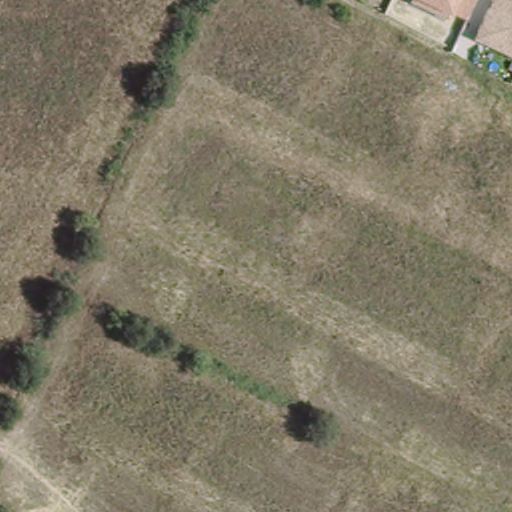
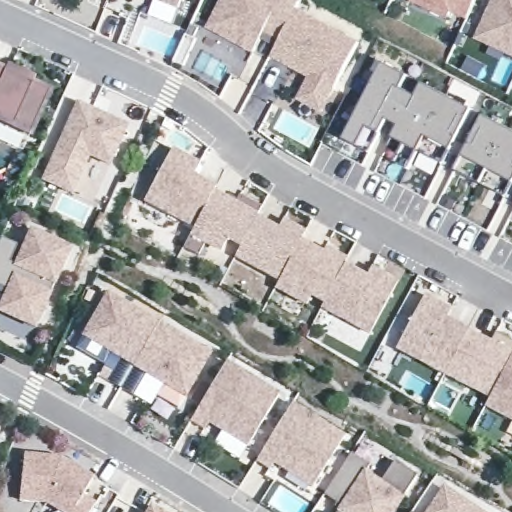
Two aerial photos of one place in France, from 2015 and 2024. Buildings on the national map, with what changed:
new [(183,10),(158,0),(187,0),(183,10)]
new [(300,1),(279,40),(265,33),(253,54),(206,29),(222,0),(298,0),(300,1)]
unchanged [(467,20),(452,13),(426,0),(475,0),(467,20)]
unchanged [(475,38),(493,0),(512,0),(512,55),(475,38)]
new [(359,43),(334,89),(336,90),(321,113),(296,100),(308,78),(271,58),(276,48),(261,40),(265,33),(279,40),(296,8),(359,43)]
new [(506,198),(455,170),(468,146),(457,140),(443,165),(417,152),(408,169),(394,162),(404,143),(394,138),(401,125),(387,118),(369,153),(343,140),(384,63),(407,76),(400,89),(417,98),(424,85),(472,109),(463,129),(474,135),(485,116),(512,130),(512,186),(506,198)]
new [(30,136),(0,122),(0,72),(48,94),(30,136)]
new [(79,97),(129,120),(113,159),(92,150),(75,187),(45,174),(79,97)]
new [(202,168),(196,180),(203,184),(218,191),(214,197),(196,233),(146,206),(174,153),(202,168)]
new [(196,233),(214,197),(236,209),(241,200),(263,212),(258,221),(243,249),(230,242),(223,255),(208,246),(201,260),(186,251),(196,233)]
new [(258,221),(281,233),(285,224),(293,228),(306,236),(301,245),(323,256),(326,252),(348,264),(346,268),(324,305),(313,299),(308,307),(276,291),(280,284),(236,261),(243,249),(258,221)]
new [(0,253),(4,243),(21,250),(13,267),(20,269),(35,235),(73,253),(39,331),(3,315),(10,300),(1,296),(0,295),(0,253)]
new [(324,305),(346,268),(368,279),(372,271),(399,285),(371,336),(322,310),(324,305)]
new [(110,344),(105,354),(79,339),(85,329),(83,328),(109,285),(161,315),(136,359),(110,344)]
new [(427,300),(453,314),(448,323),(470,335),(446,379),(446,380),(397,354),(427,300)]
new [(213,346),(188,388),(185,387),(178,400),(161,390),(168,377),(136,359),(161,315),(213,346)]
new [(470,335),(497,349),(502,340),(512,345),(512,362),(489,402),(446,379),(470,335)]
new [(489,402),(512,362),(512,423),(486,409),(489,402)]
new [(228,365),(281,397),(250,449),(211,425),(207,432),(193,423),(228,365)]
new [(296,408),(346,439),(314,490),(275,466),(271,472),(259,465),(296,408)]
new [(27,456),(64,460),(96,479),(85,498),(98,506),(95,512),(45,512),(49,505),(23,502),(27,456)]
new [(374,469),(369,476),(384,486),(398,465),(421,480),(399,512),(344,512),(346,510),(329,498),(356,457),(374,469)]
new [(470,512),(435,512),(446,496),(470,512)]
new [(164,512),(153,512),(156,507),(164,512)]

